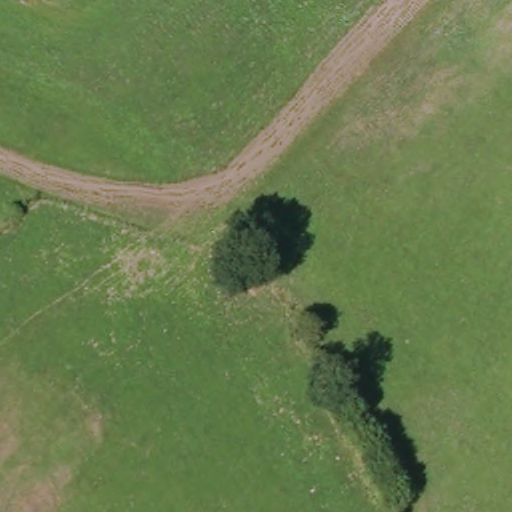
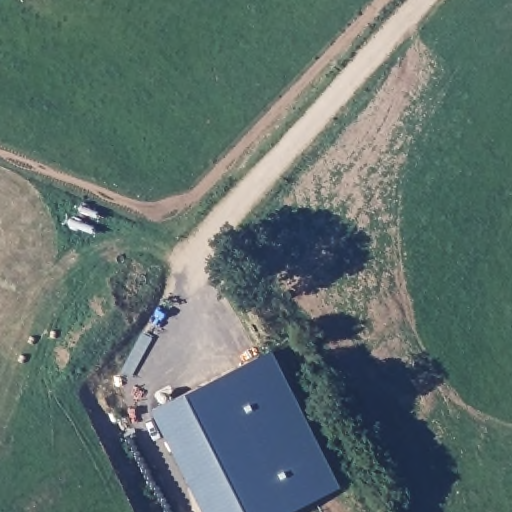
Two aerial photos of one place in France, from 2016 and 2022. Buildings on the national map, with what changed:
new [(291,512),(204,512),(152,410),(163,405),(160,400),(160,398),(160,396),(160,395),(162,393),(164,392),(165,392),(168,395),(171,401),(275,349),(343,485),(291,512)]

